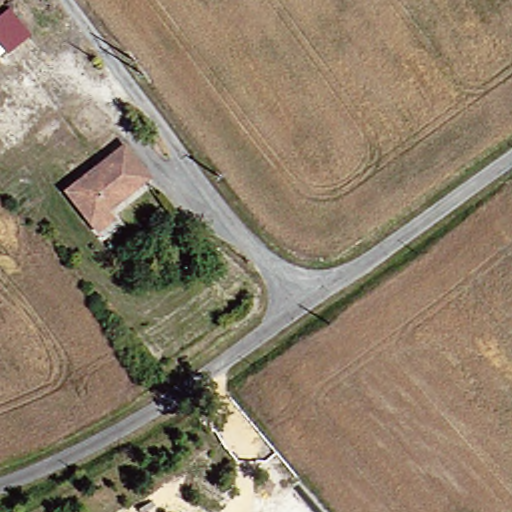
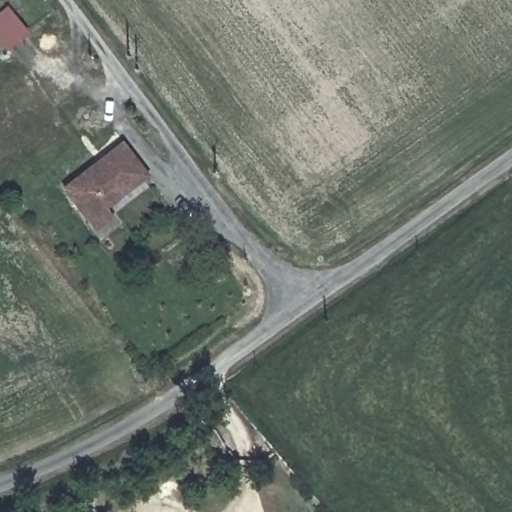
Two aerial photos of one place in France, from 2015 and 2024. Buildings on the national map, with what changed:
unchanged [(99,236),(93,224),(68,191),(132,144),(153,177),(115,206),(123,218),(99,236)]

